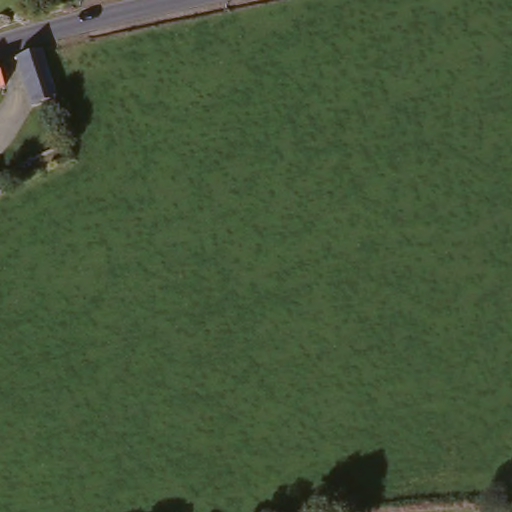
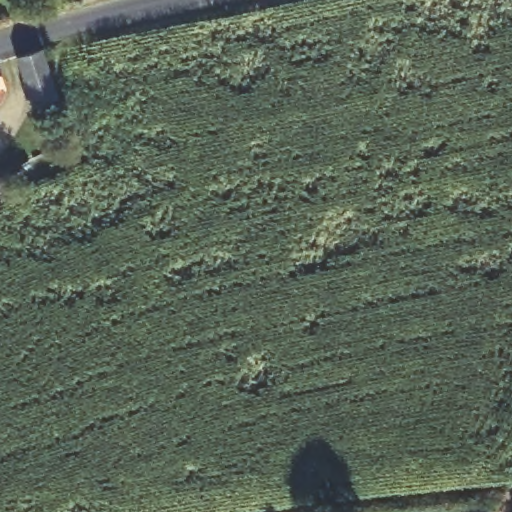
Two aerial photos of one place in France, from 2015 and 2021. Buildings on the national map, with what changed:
unchanged [(18,55),(44,49),(57,97),(33,104),(18,55)]
unchanged [(2,94),(0,95),(0,85),(2,94)]
unchanged [(4,195),(0,198),(0,182),(4,195)]

